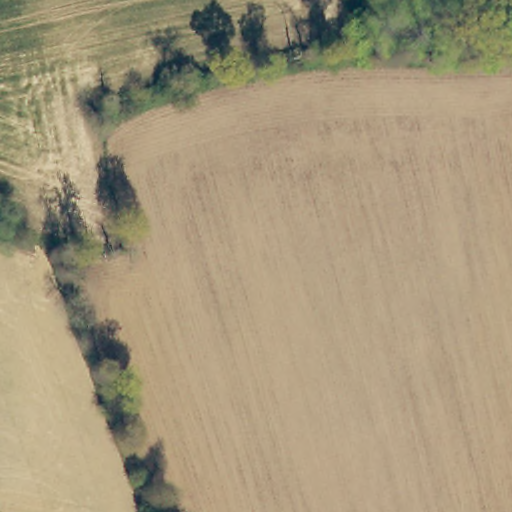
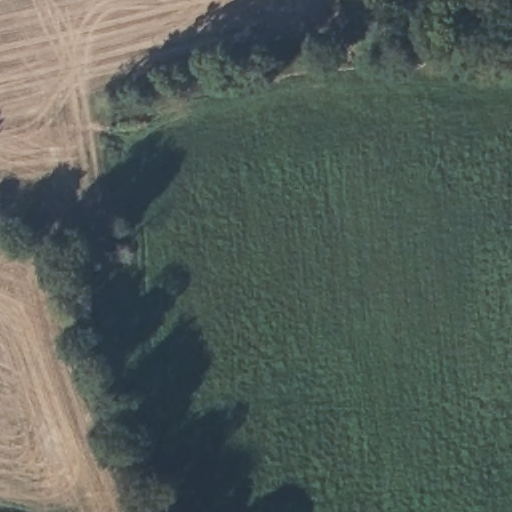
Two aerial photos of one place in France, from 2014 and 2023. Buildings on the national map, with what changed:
[]

